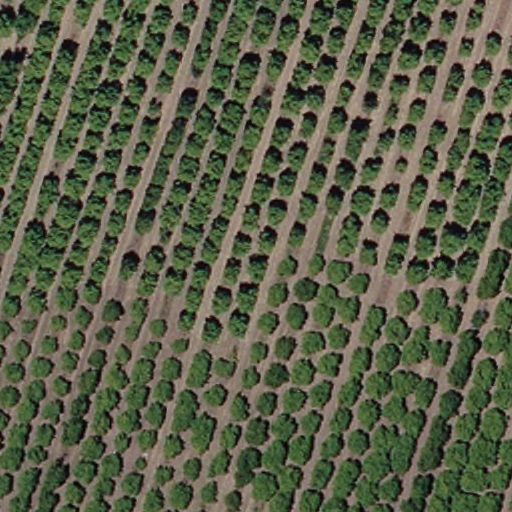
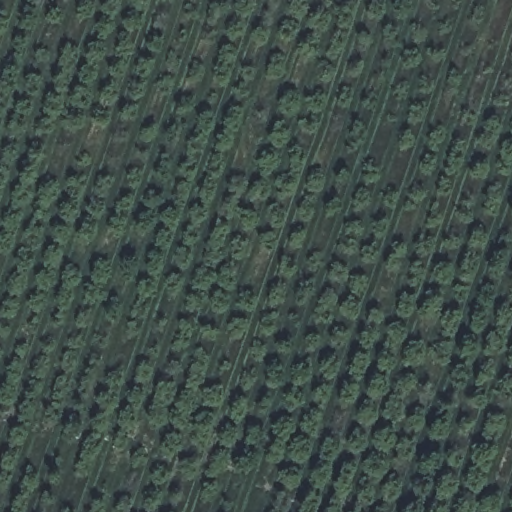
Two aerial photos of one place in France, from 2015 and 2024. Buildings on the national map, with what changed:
[]

